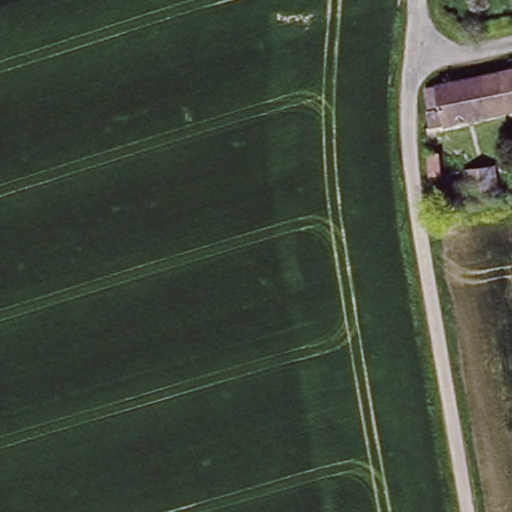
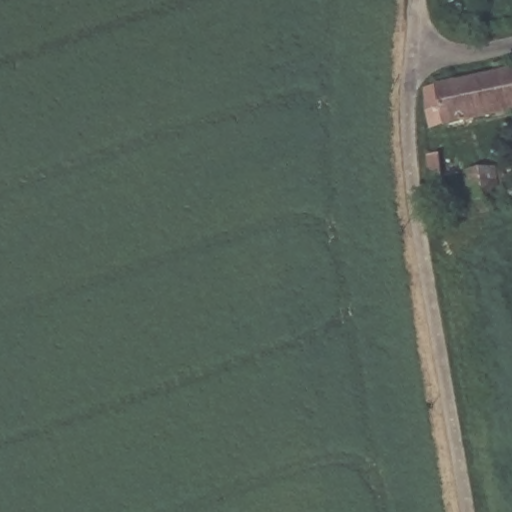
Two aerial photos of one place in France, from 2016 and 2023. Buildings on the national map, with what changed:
unchanged [(512,107),(430,124),(431,84),(443,79),(512,65),(512,107)]
unchanged [(446,147),(450,171),(432,174),(431,150),(446,147)]
unchanged [(495,162),(501,193),(475,199),(468,168),(495,162)]

